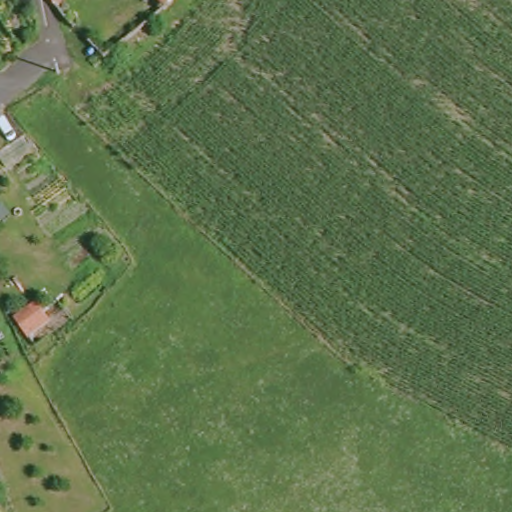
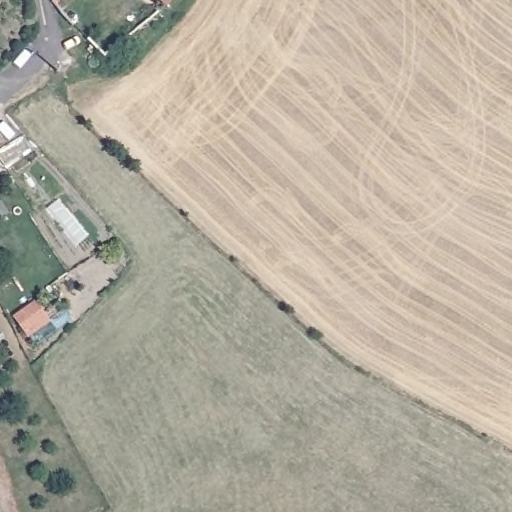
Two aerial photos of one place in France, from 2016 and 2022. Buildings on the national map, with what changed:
unchanged [(48,0),(55,0),(52,5),(48,0)]
unchanged [(162,1),(160,0),(163,0),(162,1)]

